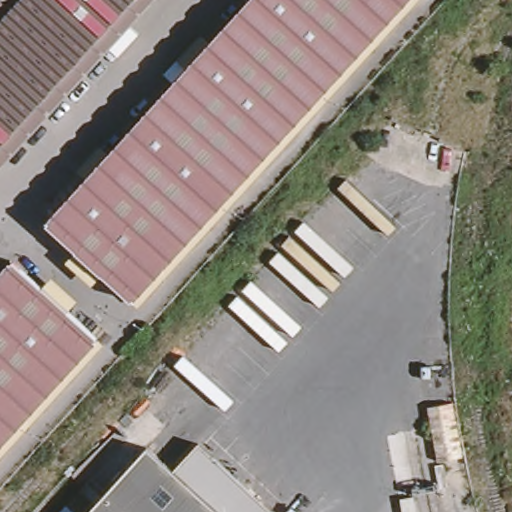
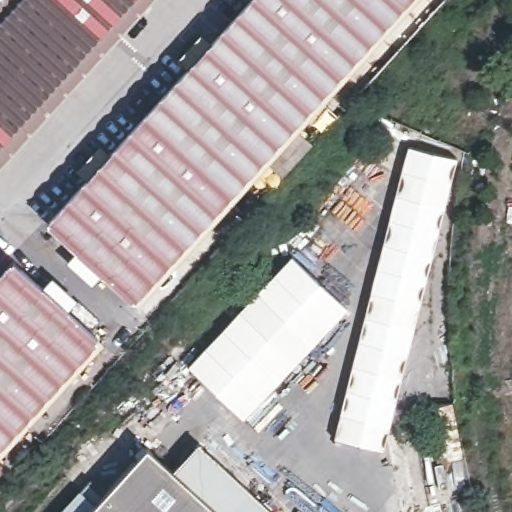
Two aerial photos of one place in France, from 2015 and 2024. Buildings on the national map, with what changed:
unchanged [(16,0),(39,0),(0,43),(0,18),(16,0)]
unchanged [(39,0),(153,0),(0,167),(0,43),(39,0)]
unchanged [(173,0),(8,179),(0,172),(0,167),(153,0),(173,0)]
unchanged [(52,224),(258,0),(409,0),(135,299),(52,224)]
new [(298,130),(311,143),(282,176),(268,164),(298,130)]
new [(385,451),(334,438),(408,146),(459,159),(385,451)]
unchanged [(95,334),(0,437),(0,269),(11,257),(95,334)]
new [(349,308),(243,420),(189,367),(292,257),(349,308)]
unchanged [(465,459),(446,464),(452,491),(437,491),(425,404),(453,401),(465,459)]
unchanged [(148,444),(168,466),(188,443),(264,512),(92,512),(106,497),(148,444)]

